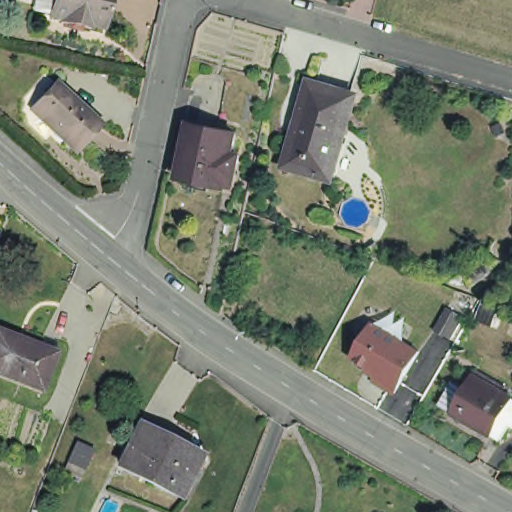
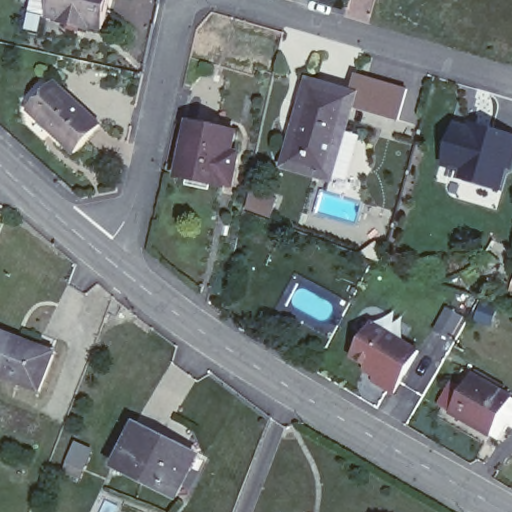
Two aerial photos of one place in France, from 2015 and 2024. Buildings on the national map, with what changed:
unchanged [(60,26),(60,20),(45,17),(50,0),(82,0),(75,29),(60,26)]
unchanged [(82,0),(107,0),(102,29),(88,27),(88,32),(75,29),(82,0)]
unchanged [(362,88),(340,183),(281,171),(302,75),(362,88)]
new [(358,75),(412,90),(405,122),(360,109),(362,88),(355,88),(358,75)]
unchanged [(106,126),(78,155),(57,135),(33,112),(59,83),(67,90),(106,126)]
unchanged [(245,127),(237,191),(181,183),(190,119),(245,127)]
new [(502,192),(458,179),(460,172),(444,168),(457,123),(473,128),(475,124),(512,134),(512,170),(509,169),(502,192)]
unchanged [(423,351),(397,396),(372,382),(376,376),(365,370),(367,365),(353,358),(377,321),(423,351)]
unchanged [(0,374),(0,330),(32,342),(32,345),(57,355),(43,391),(0,374)]
unchanged [(442,411),(437,408),(440,403),(452,384),(453,385),(465,391),(472,379),(495,392),(497,389),(504,392),(502,396),(512,402),(512,431),(508,429),(505,432),(499,443),(490,438),(450,415),(442,411)]
unchanged [(117,465),(135,427),(197,459),(178,494),(117,465)]
unchanged [(60,459),(67,442),(82,448),(75,465),(60,459)]

